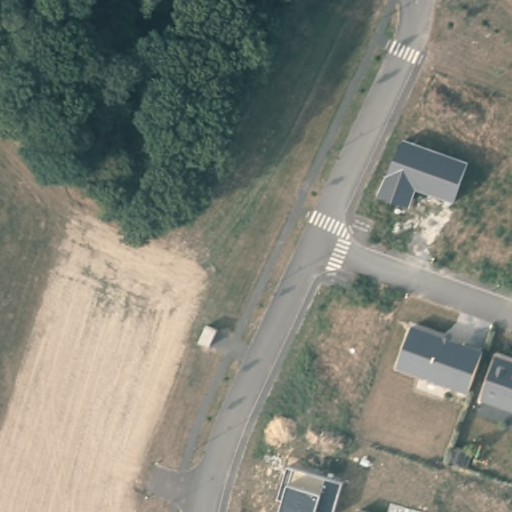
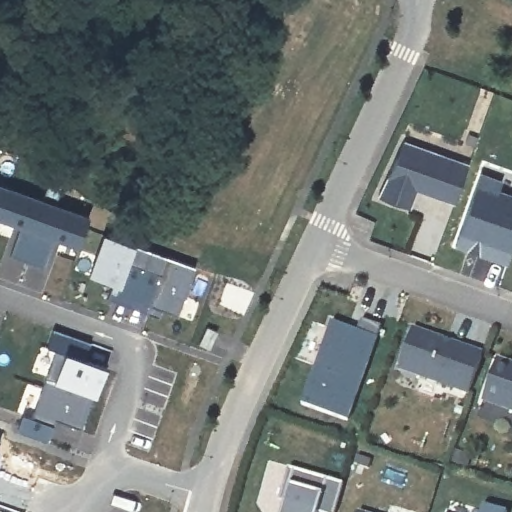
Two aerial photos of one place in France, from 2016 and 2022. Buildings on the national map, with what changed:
unchanged [(453,204),(417,190),(410,206),(378,194),(402,140),(468,162),(453,204)]
new [(506,263),(455,245),(480,172),(501,179),(499,189),(512,193),(512,248),(506,263)]
new [(90,215),(79,246),(53,237),(44,266),(10,254),(20,226),(0,218),(0,183),(41,198),(47,179),(61,184),(55,202),(90,215)]
new [(177,314),(160,308),(157,316),(106,298),(111,284),(87,274),(103,233),(135,244),(194,266),(177,314)]
new [(350,421),(300,404),(330,320),(356,330),(360,318),(380,325),(350,421)]
new [(107,367),(96,395),(92,394),(80,429),(55,419),(49,442),(16,432),(22,413),(31,417),(55,349),(46,346),(52,327),(110,349),(107,367)]
unchanged [(469,395),(397,370),(412,328),(483,353),(469,395)]
unchanged [(481,401),(497,357),(512,362),(512,412),(481,401)]
unchanged [(324,512),(317,510),(317,512),(283,512),(285,499),(281,498),(290,467),(344,484),(333,512),(324,512)]
new [(506,512),(480,512),(481,505),(506,512)]
unchanged [(362,512),(358,512),(358,511),(362,512)]

